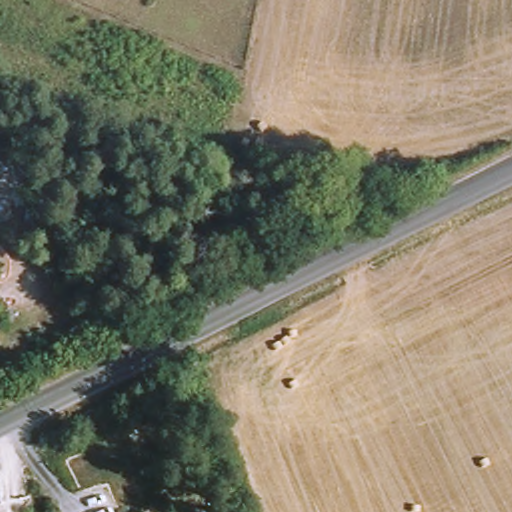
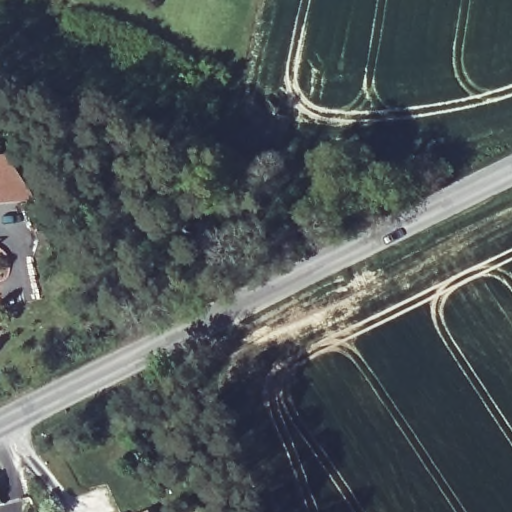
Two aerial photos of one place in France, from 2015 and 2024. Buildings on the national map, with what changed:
new [(35,199),(0,203),(0,156),(9,155),(35,199)]

